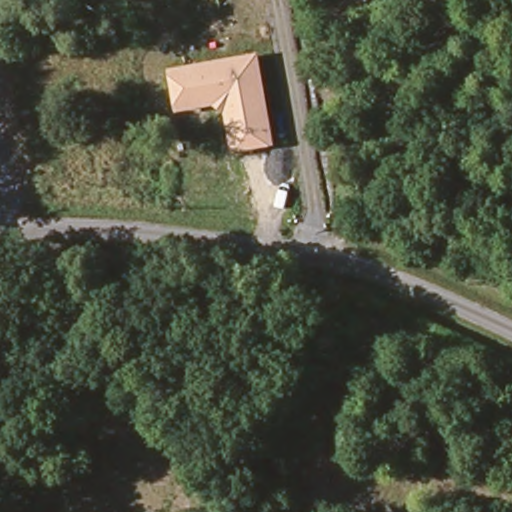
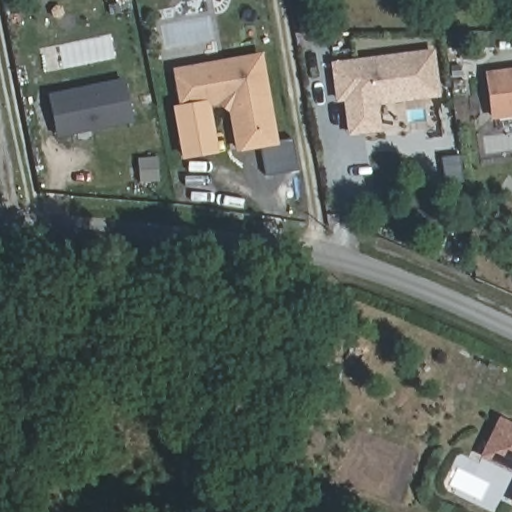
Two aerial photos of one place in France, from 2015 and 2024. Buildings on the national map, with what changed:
unchanged [(179,112),(171,68),(261,52),(278,146),(235,153),(227,111),(216,105),(179,112)]
new [(375,102),(378,129),(350,132),(345,98),(350,98),(348,85),(335,86),(333,65),(420,54),(423,75),(434,74),(437,94),(375,102)]
new [(491,117),(486,74),(512,71),(512,115),(491,117)]
new [(134,122),(57,138),(49,93),(124,78),(134,122)]
new [(179,112),(210,106),(217,153),(181,159),(170,106),(177,104),(179,112)]
new [(478,457),(499,416),(512,423),(512,473),(478,457)]
new [(511,502),(512,500),(512,502),(511,502)]

